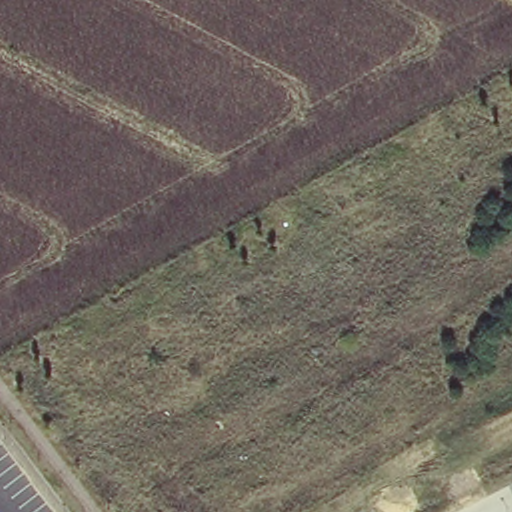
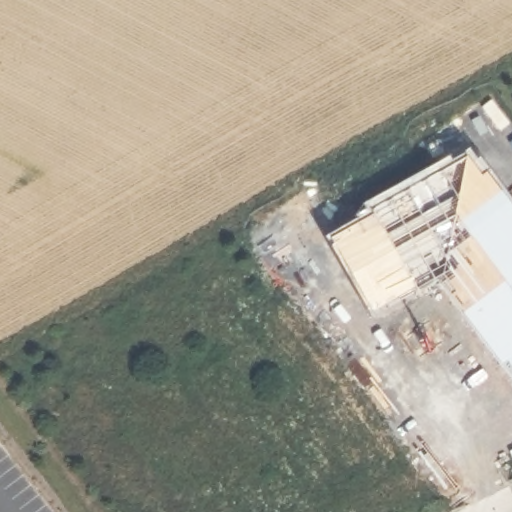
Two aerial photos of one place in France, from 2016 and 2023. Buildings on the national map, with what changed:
new [(359,218),(353,209),(467,143),(477,158),(481,154),(512,197),(512,379),(435,279),(370,312),(326,236),(359,218)]

